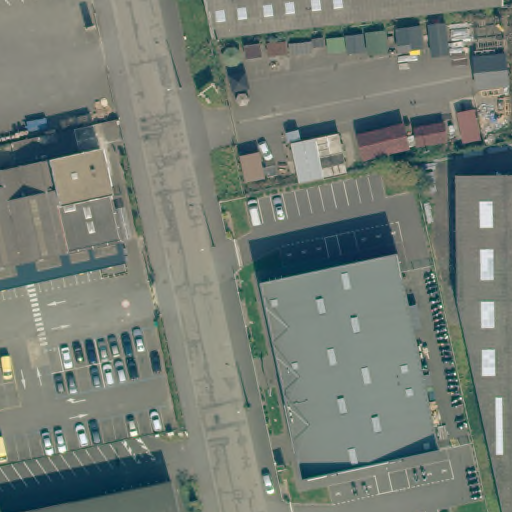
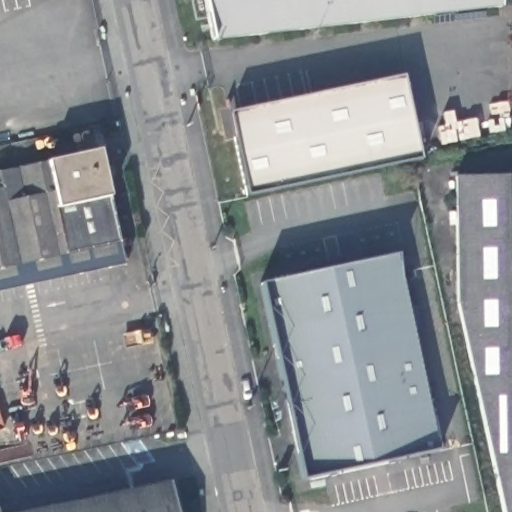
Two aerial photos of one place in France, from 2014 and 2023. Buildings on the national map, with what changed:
unchanged [(211,42),(202,0),(503,0),(503,9),(503,10),(279,35),(211,42)]
new [(405,79),(423,163),(249,201),(230,116),(405,79)]
unchanged [(95,152),(115,245),(0,270),(0,172),(95,152)]
unchanged [(448,303),(456,176),(512,175),(512,512),(493,512),(448,303)]
unchanged [(115,245),(120,266),(0,292),(0,270),(115,245)]
unchanged [(261,285),(396,255),(438,450),(302,480),(261,285)]
unchanged [(169,482),(176,512),(28,512),(169,482)]

